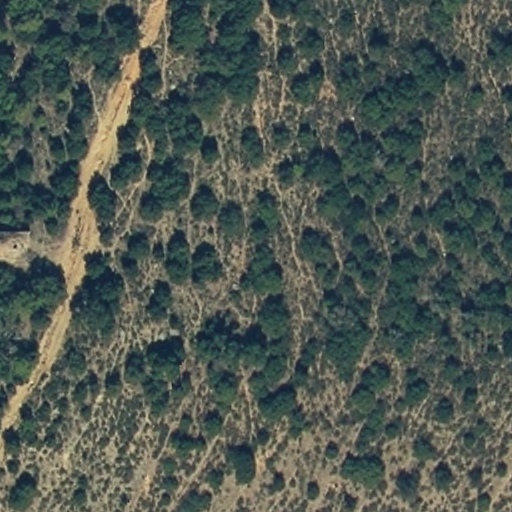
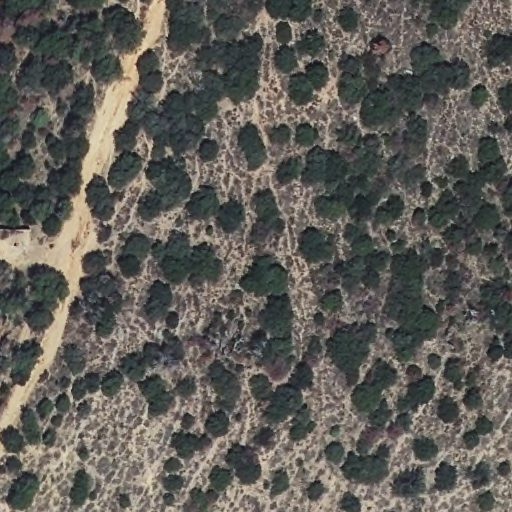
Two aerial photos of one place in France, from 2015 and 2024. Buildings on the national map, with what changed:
unchanged [(24,260),(0,260),(0,231),(28,231),(24,260)]

